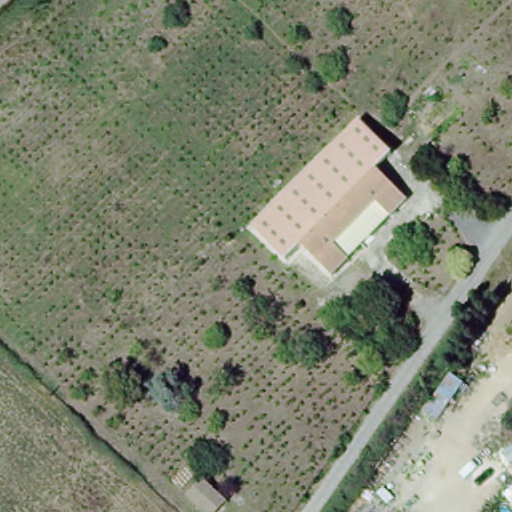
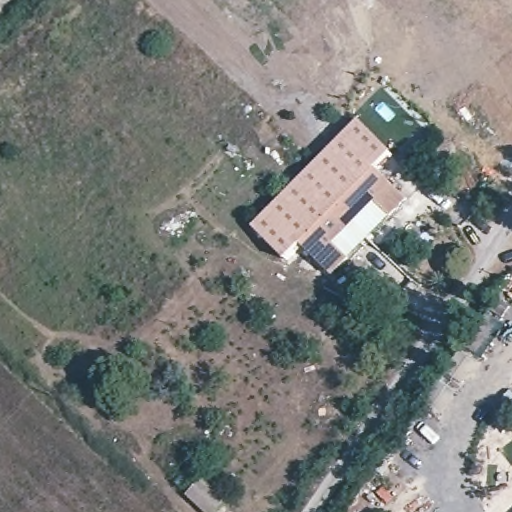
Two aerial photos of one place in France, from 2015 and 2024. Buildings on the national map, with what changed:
unchanged [(393,154),(376,171),(404,200),(330,275),(301,246),(285,261),(252,227),(356,123),(393,154)]
unchanged [(200,484),(225,507),(220,512),(199,512),(186,499),(200,484)]

